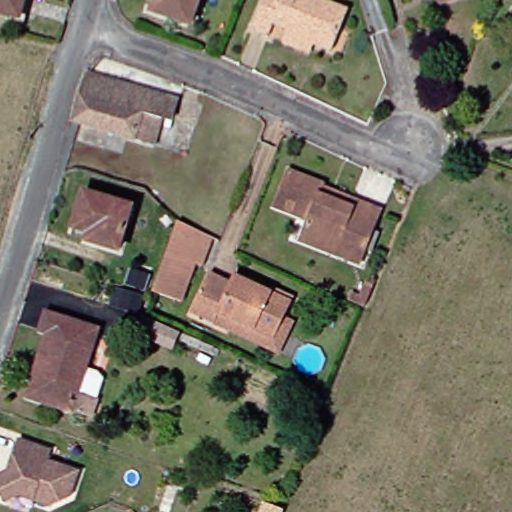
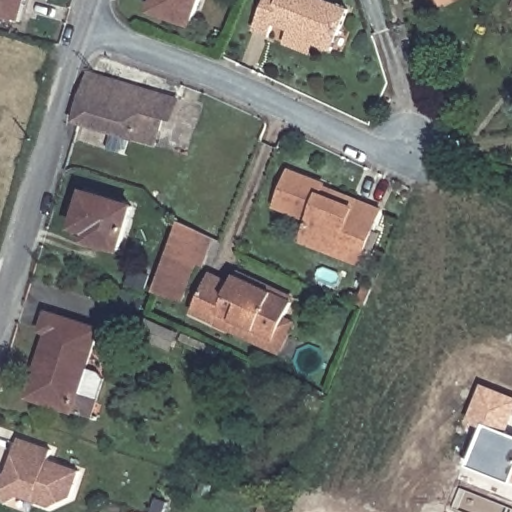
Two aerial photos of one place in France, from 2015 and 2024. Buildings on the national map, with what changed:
unchanged [(0,10),(0,0),(30,0),(26,16),(0,10)]
unchanged [(162,11),(165,0),(211,0),(204,24),(162,11)]
unchanged [(296,31),(281,25),(276,36),(260,30),(272,0),(274,0),(284,4),(285,0),(326,0),(352,10),(336,50),(320,44),(316,55),(291,44),(296,31)]
unchanged [(447,0),(450,0),(448,1),(447,0)]
unchanged [(79,122),(93,69),(98,70),(174,97),(168,117),(167,119),(159,145),(81,123),(79,122)]
unchanged [(340,257),(306,242),(313,224),(281,210),(295,174),(329,188),(325,197),(359,211),(362,203),(386,214),(369,254),(363,267),(340,257)]
unchanged [(138,209),(124,251),(104,245),(106,236),(79,228),(90,194),(138,209)]
unchanged [(210,265),(203,263),(188,300),(160,290),(185,222),(220,239),(210,265)]
unchanged [(284,350),(220,321),(198,311),(216,273),(239,282),(242,275),(296,300),(289,316),(297,320),(284,350)]
unchanged [(95,420),(75,413),(37,401),(31,400),(41,368),(50,337),(44,335),(50,315),(101,331),(80,398),(100,405),(95,420)]
unchanged [(174,336),(168,351),(131,335),(139,320),(174,336)]
new [(469,465),(483,429),(468,422),(483,384),(512,395),(512,426),(510,433),(512,434),(512,482),(469,465)]
unchanged [(83,468),(75,494),(53,505),(23,495),(10,501),(0,482),(0,477),(11,472),(16,455),(23,437),(55,448),(51,458),(83,468)]
unchanged [(284,510),(283,512),(261,512),(265,502),(284,510)]

